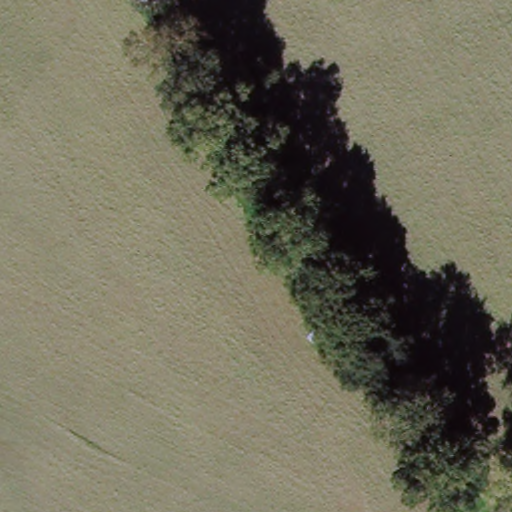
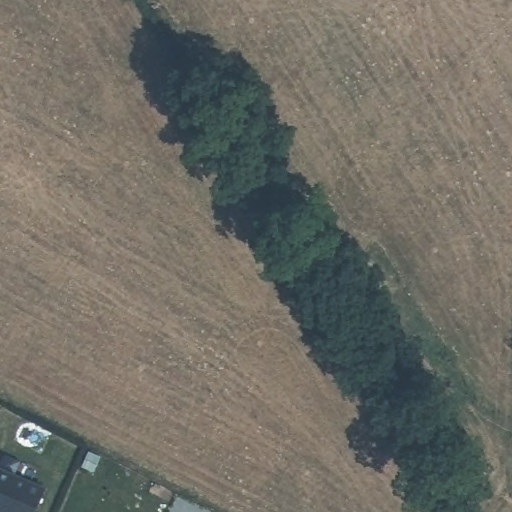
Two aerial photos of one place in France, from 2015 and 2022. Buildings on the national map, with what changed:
new [(47,490),(37,512),(0,512),(0,470),(47,490)]

